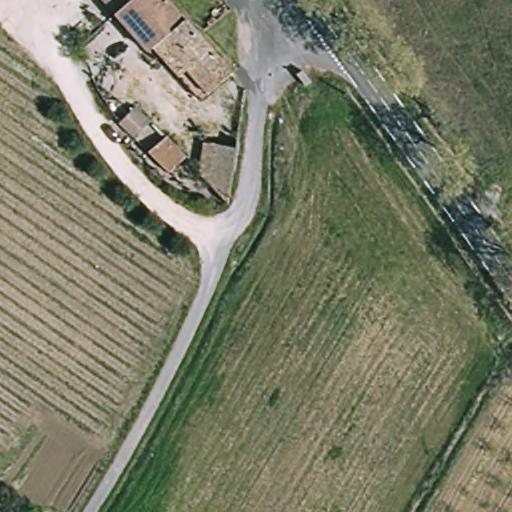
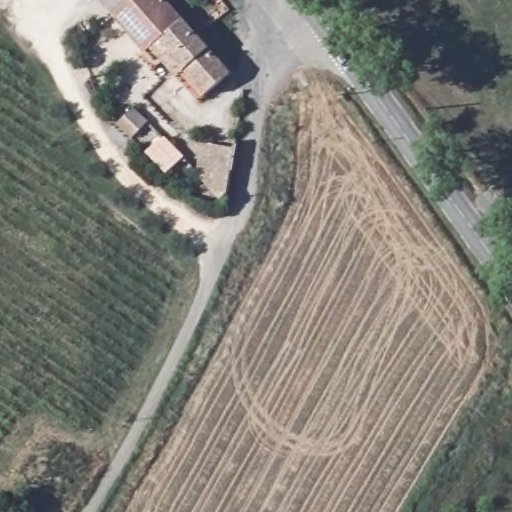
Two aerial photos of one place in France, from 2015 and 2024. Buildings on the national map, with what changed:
unchanged [(95,0),(116,0),(105,10),(95,0)]
unchanged [(151,54),(146,58),(105,10),(116,0),(159,0),(221,69),(196,92),(190,97),(151,54)]
unchanged [(132,109),(149,125),(133,141),(118,124),(132,109)]
unchanged [(164,141),(181,159),(165,175),(148,157),(164,141)]
unchanged [(188,176),(194,145),(225,147),(217,209),(188,176)]

